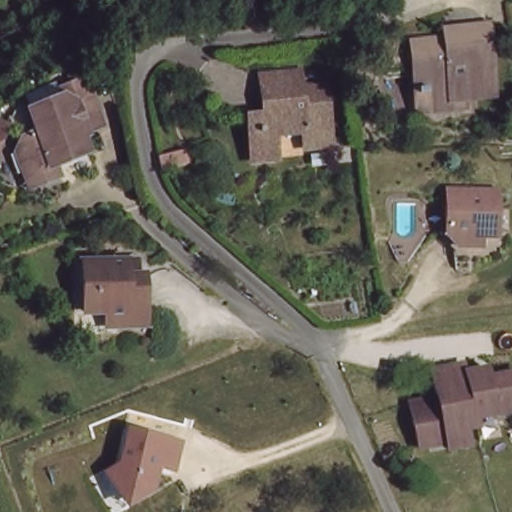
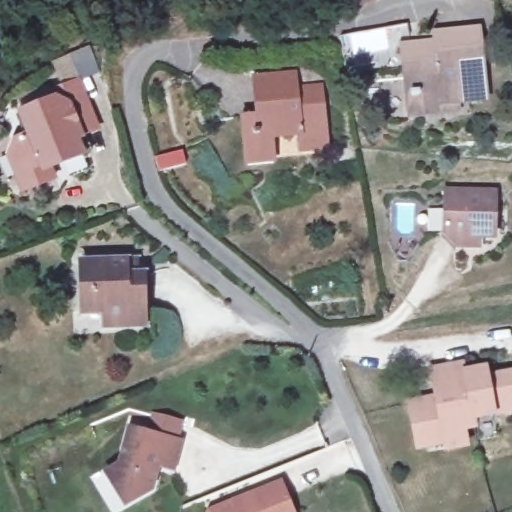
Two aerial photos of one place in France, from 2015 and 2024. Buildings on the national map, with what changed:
unchanged [(445,111),(417,114),(410,115),(405,79),(402,46),(436,42),(435,33),(446,32),(479,29),(486,96),(456,99),(457,110),(445,111)]
unchanged [(0,156),(0,144),(5,135),(19,129),(10,107),(45,93),(43,87),(51,83),(55,81),(52,74),(63,70),(66,77),(70,75),(88,121),(71,128),(72,131),(67,133),(73,148),(52,157),(50,152),(38,157),(45,172),(28,179),(13,185),(6,170),(0,156)]
unchanged [(296,99),(321,96),(327,156),(301,158),(300,142),(271,145),(273,168),(247,171),(243,128),(258,126),(255,88),(279,85),(295,84),(296,99)]
unchanged [(155,156),(182,149),(186,163),(158,172),(155,156)]
unchanged [(489,241),(474,241),(473,251),(450,250),(440,239),(441,195),(490,197),(489,241)]
unchanged [(95,335),(95,325),(95,320),(74,321),(72,271),(115,270),(128,269),(129,284),(132,284),(133,316),(134,334),(95,335)]
unchanged [(403,405),(425,402),(425,407),(431,406),(425,373),(458,368),(460,375),(480,372),(483,387),(489,385),(488,380),(511,375),(512,378),(512,414),(509,414),(468,422),(470,431),(458,433),(461,449),(440,453),(437,441),(420,444),(410,446),(407,430),(403,405)]
unchanged [(183,441),(175,472),(158,467),(155,491),(125,510),(101,470),(115,461),(128,426),(183,441)]
new [(293,512),(210,512),(282,483),(293,512)]

